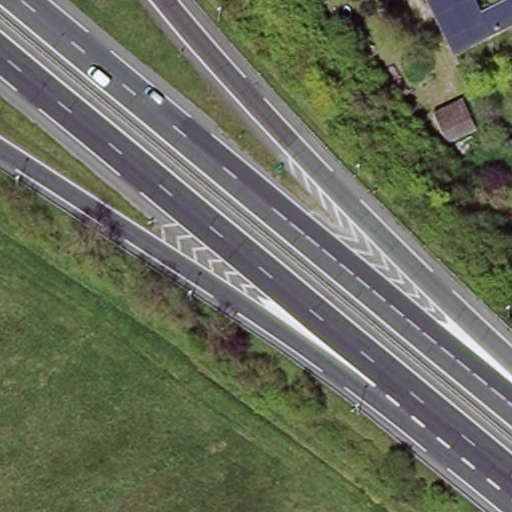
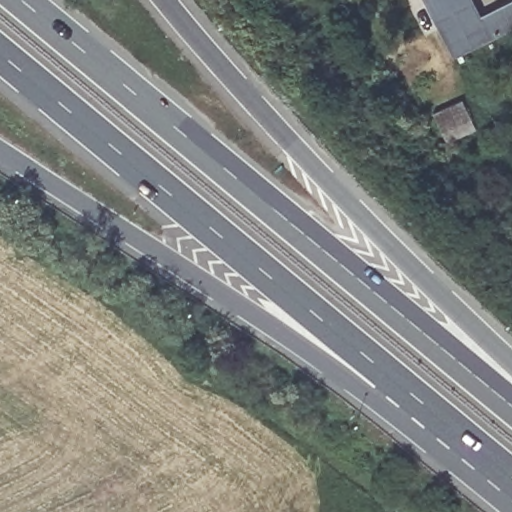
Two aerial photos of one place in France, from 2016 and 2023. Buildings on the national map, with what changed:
unchanged [(512,6),(512,31),(458,60),(427,0),(472,0),(483,21),(512,6)]
unchanged [(471,127),(442,142),(428,114),(457,99),(471,127)]

